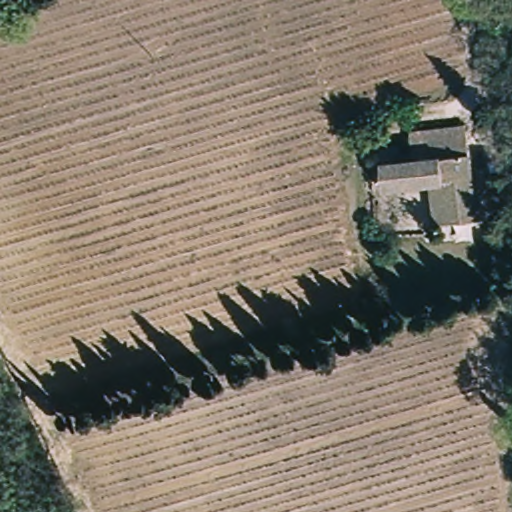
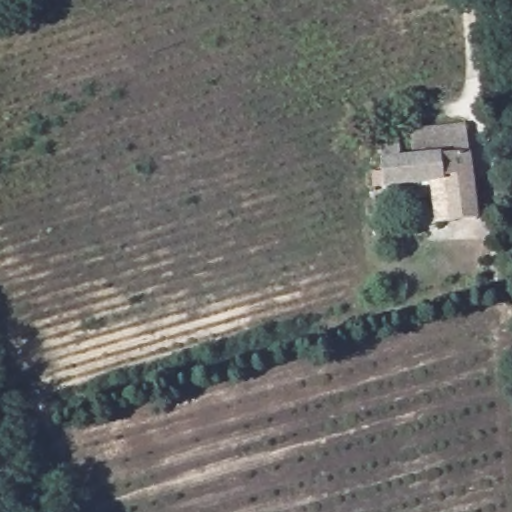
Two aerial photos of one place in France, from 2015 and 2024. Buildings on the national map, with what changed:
unchanged [(480,217),(437,221),(435,181),(386,183),(385,154),(415,151),(411,124),(470,120),(480,217)]

